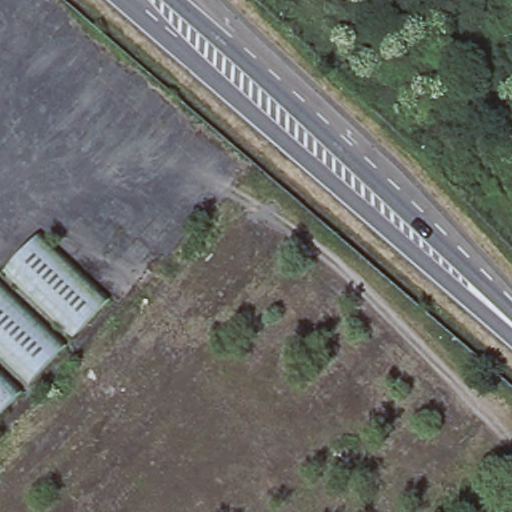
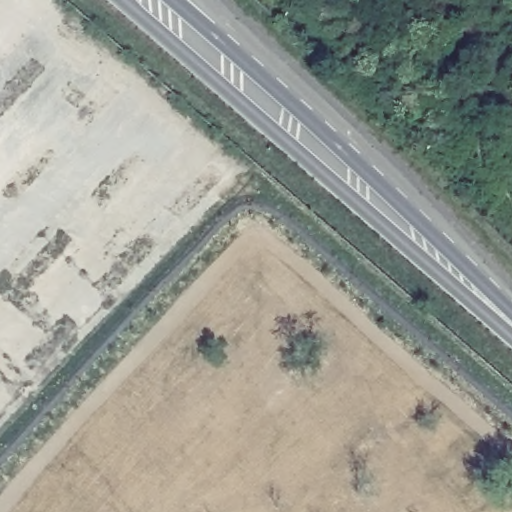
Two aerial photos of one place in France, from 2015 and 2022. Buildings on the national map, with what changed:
demolished [(110,302),(0,423),(0,273),(38,232),(110,302)]

